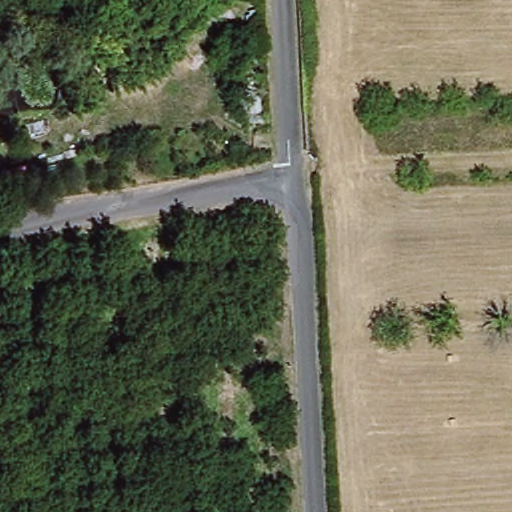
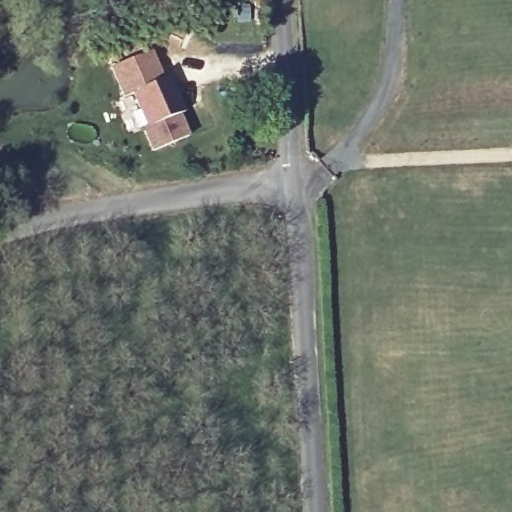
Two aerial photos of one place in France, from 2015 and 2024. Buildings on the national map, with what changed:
new [(152,49),(165,76),(130,95),(123,98),(109,67),(152,49)]
new [(165,76),(185,110),(181,111),(145,127),(130,95),(165,76)]
new [(145,127),(181,111),(192,136),(152,153),(140,128),(145,127)]
unchanged [(38,196),(0,208),(0,176),(26,169),(38,196)]

